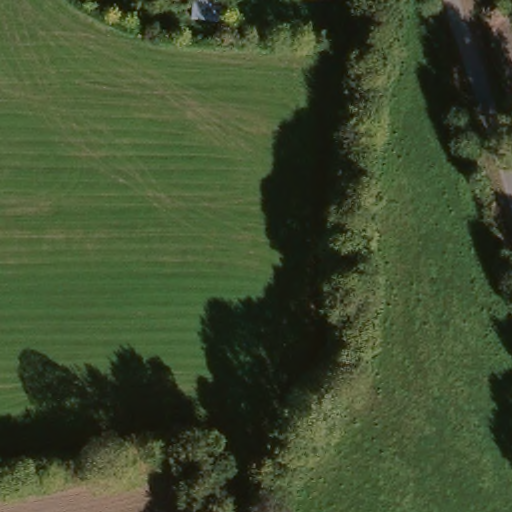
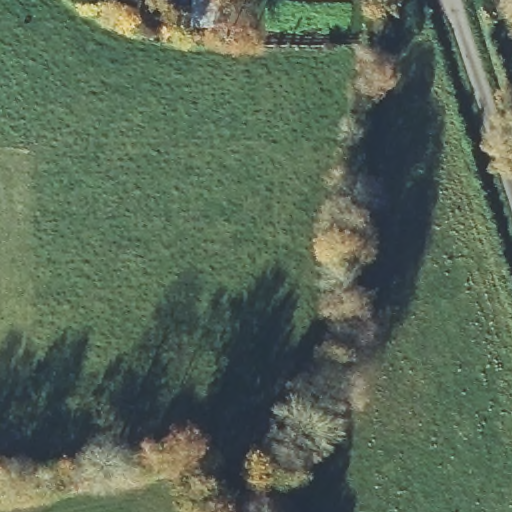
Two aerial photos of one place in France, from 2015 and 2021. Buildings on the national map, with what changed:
unchanged [(214,16),(191,16),(195,0),(216,0),(214,16)]

